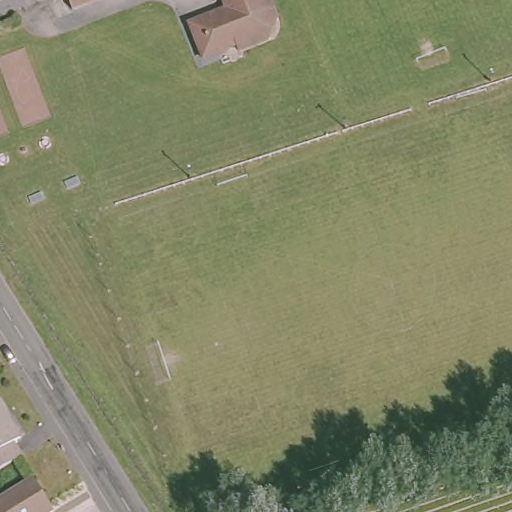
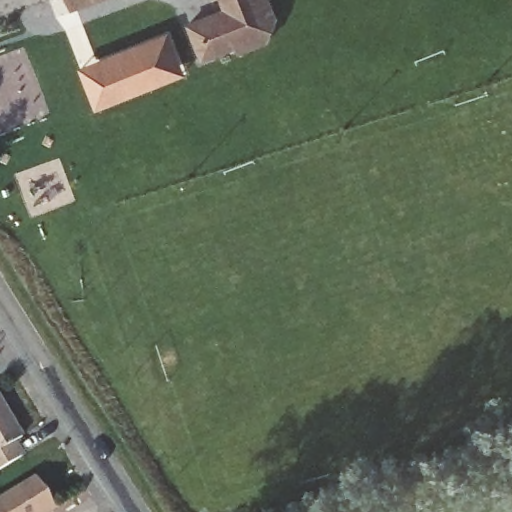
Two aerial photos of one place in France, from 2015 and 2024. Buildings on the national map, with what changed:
unchanged [(71,0),(97,0),(75,9),(71,0)]
unchanged [(205,57),(192,24),(228,10),(224,0),(272,0),(280,21),(272,41),(258,46),(240,52),(237,45),(205,57)]
new [(82,63),(172,26),(187,74),(98,109),(82,63)]
unchanged [(0,390),(2,389),(27,432),(20,436),(29,450),(0,468),(0,390)]
unchanged [(0,496),(32,476),(55,512),(0,512),(0,496)]

